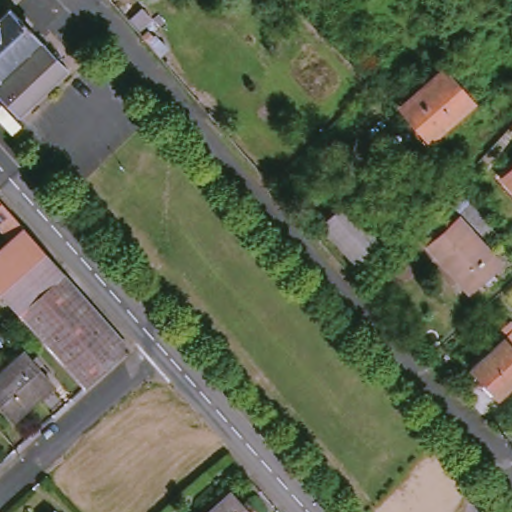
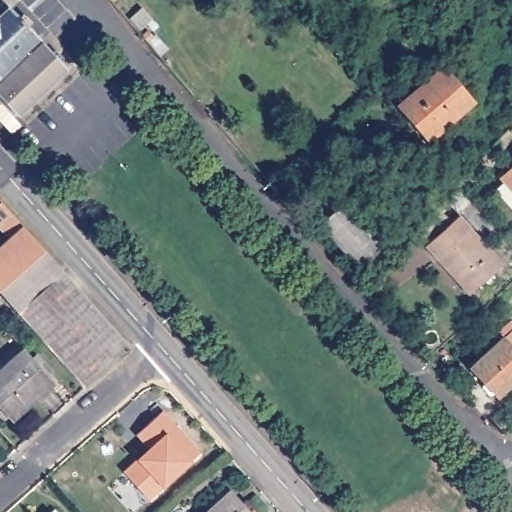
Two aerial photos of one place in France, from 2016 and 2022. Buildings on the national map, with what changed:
unchanged [(33,34),(21,46),(25,51),(30,49),(34,47),(39,46),(44,47),(56,61),(14,99),(0,83),(0,9),(6,3),(33,34)]
unchanged [(56,61),(44,47),(38,40),(39,39),(64,66),(13,112),(0,98),(0,83),(14,99),(56,61)]
unchanged [(395,108),(435,70),(466,104),(426,141),(395,108)]
unchanged [(496,175),(512,161),(512,194),(496,175)]
unchanged [(0,297),(0,241),(6,235),(0,227),(0,202),(1,203),(19,223),(58,267),(116,332),(125,341),(115,350),(78,384),(12,310),(0,297)]
unchanged [(339,202),(383,248),(359,270),(316,223),(339,202)]
unchanged [(474,300),(433,252),(420,238),(448,208),(464,226),(504,273),(474,300)]
unchanged [(492,393),(466,363),(512,323),(512,374),(492,393)]
unchanged [(0,407),(0,373),(23,352),(51,385),(11,420),(0,407)]
new [(203,454),(191,461),(193,463),(164,490),(162,487),(149,503),(123,473),(136,460),(148,450),(136,436),(163,412),(203,454)]
unchanged [(248,512),(201,512),(228,489),(248,512)]

